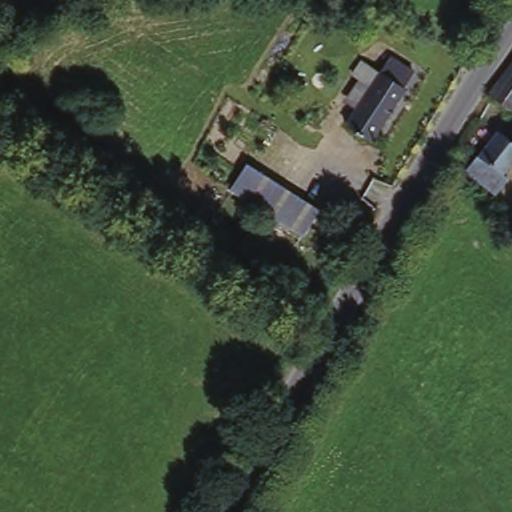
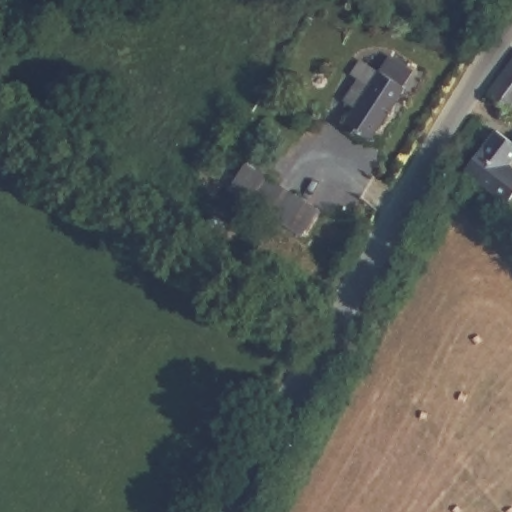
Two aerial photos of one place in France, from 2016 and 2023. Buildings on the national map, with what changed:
unchanged [(358,102),(348,96),(360,77),(370,84),(386,57),(410,72),(401,87),(403,89),(370,142),(345,125),(358,102)]
unchanged [(512,112),(511,114),(490,99),(512,67),(512,112)]
unchanged [(512,153),(491,177),(495,182),(485,195),(458,171),(490,132),(512,152),(512,153)]
unchanged [(248,168),(318,216),(300,242),(230,194),(248,168)]

